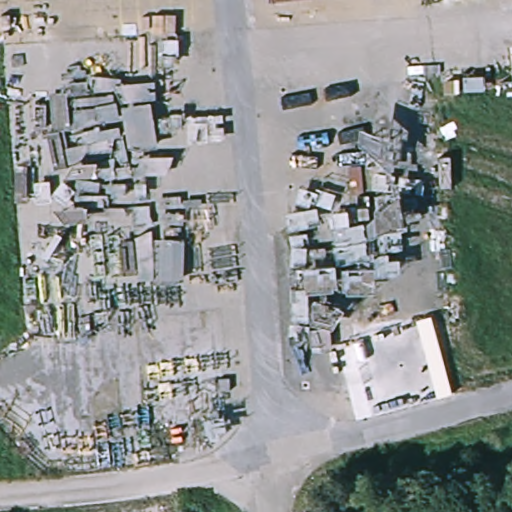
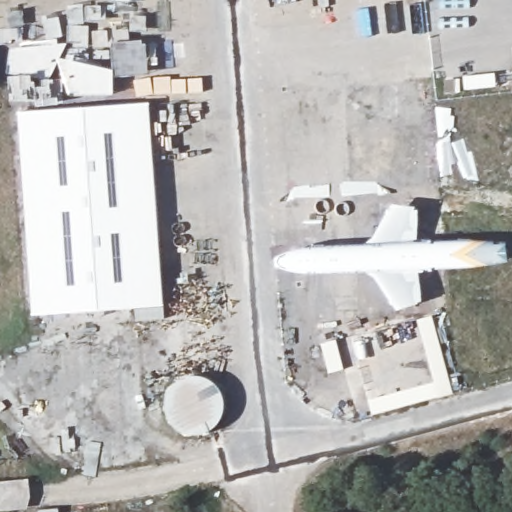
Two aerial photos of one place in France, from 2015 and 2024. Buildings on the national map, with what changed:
new [(164,306),(33,316),(18,113),(149,104),(164,306)]
new [(418,320),(433,316),(453,393),(373,415),(369,400),(435,382),(418,320)]
new [(225,408),(223,414),(218,423),(211,430),(204,433),(191,434),(181,430),(172,422),(167,411),(167,399),(170,389),(180,379),(190,375),(204,377),(214,382),(220,390),(224,398),(225,408)]

